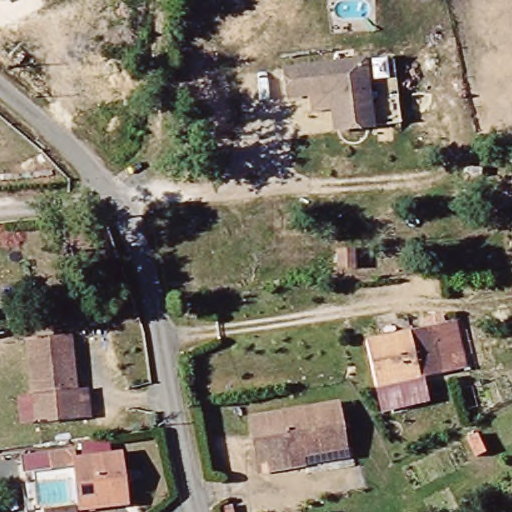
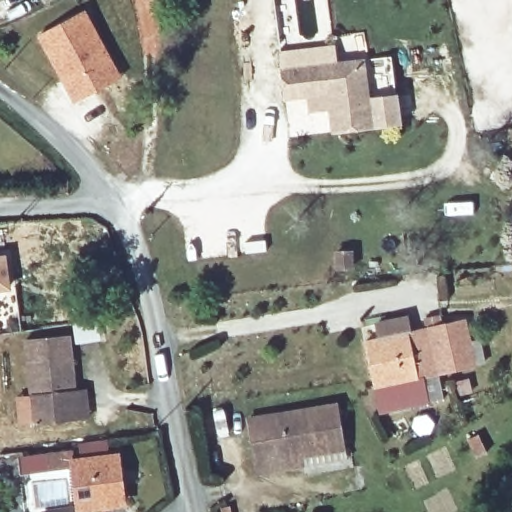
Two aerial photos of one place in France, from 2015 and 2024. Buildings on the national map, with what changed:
unchanged [(1,0),(0,1),(0,0),(1,0)]
new [(121,79),(73,104),(36,35),(85,10),(121,79)]
unchanged [(287,101),(283,73),(364,63),(374,131),(335,135),(330,96),(287,101)]
unchanged [(376,341),(456,317),(470,355),(405,376),(406,384),(384,386),(376,341)]
unchanged [(34,393),(25,336),(65,329),(75,385),(85,383),(89,408),(38,416),(23,418),(18,396),(34,393)]
unchanged [(255,470),(245,420),(346,400),(354,441),(315,449),(316,458),(255,470)]
unchanged [(24,455),(77,451),(81,459),(115,456),(117,502),(87,503),(84,475),(27,480),(24,455)]

